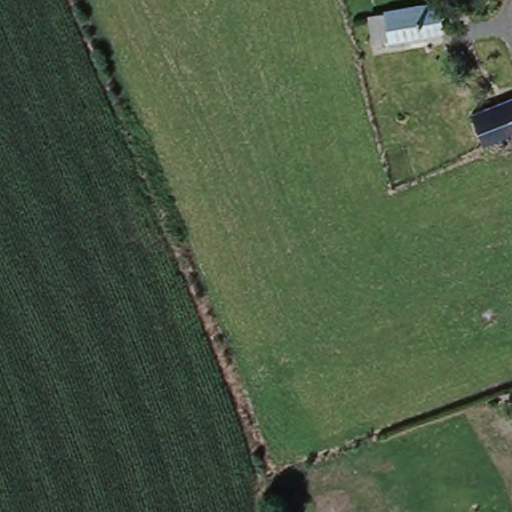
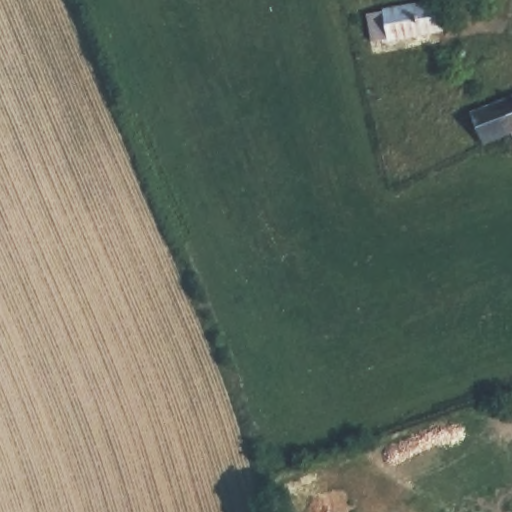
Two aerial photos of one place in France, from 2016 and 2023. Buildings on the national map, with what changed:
unchanged [(384,14),(384,10),(434,2),(435,6),(441,6),(442,11),(437,12),(439,30),(389,40),(389,37),(371,41),(368,16),(384,14)]
unchanged [(476,113),(512,97),(512,134),(488,145),(476,113)]

